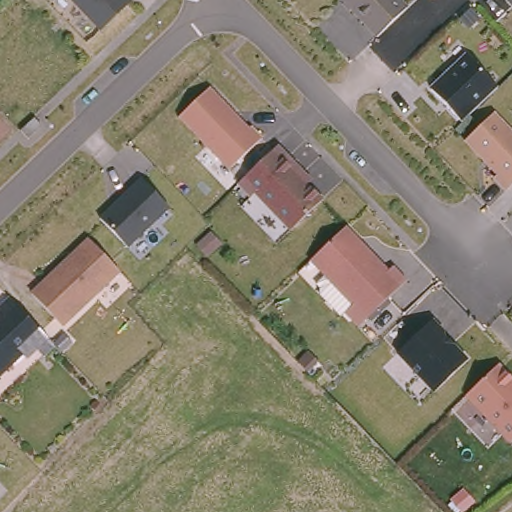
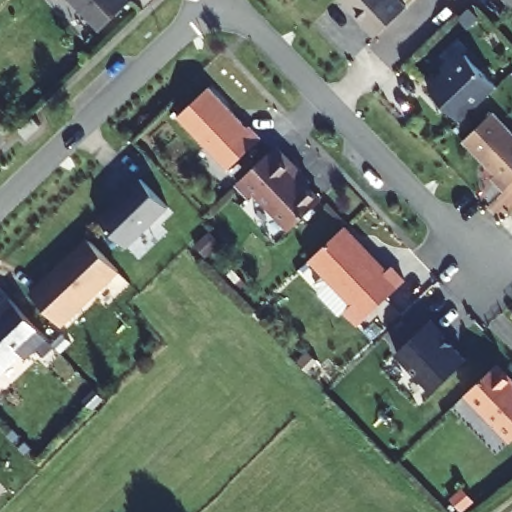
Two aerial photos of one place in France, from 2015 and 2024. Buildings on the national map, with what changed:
unchanged [(72,0),(127,0),(128,1),(100,28),(72,0)]
unchanged [(399,0),(406,7),(376,36),(363,23),(341,0),(399,0)]
unchanged [(505,0),(512,0),(512,7),(505,0)]
unchanged [(430,88),(465,54),(497,86),(470,112),(460,121),(430,88)]
unchanged [(177,117),(208,87),(248,128),(250,126),(261,138),(228,169),(177,117)]
unchanged [(493,176),(497,173),(465,139),(493,112),(512,131),(512,183),(505,189),(493,176)]
unchanged [(40,125),(27,138),(19,130),(33,117),(40,125)]
unchanged [(254,191),(250,195),(237,182),(257,164),(276,145),(302,172),(298,176),(321,200),(290,229),(254,191)]
unchanged [(168,206),(157,218),(126,246),(98,217),(110,206),(113,206),(119,202),(117,199),(127,190),(140,177),(168,206)]
unchanged [(318,294),(318,287),(327,278),(309,259),(344,226),(386,270),(391,266),(405,280),(385,300),(365,318),(357,326),(343,311),(339,316),(318,294)]
unchanged [(88,238),(95,244),(118,270),(61,325),(30,293),(88,238)]
unchanged [(48,337),(27,358),(21,352),(0,373),(0,313),(0,312),(0,306),(10,297),(18,305),(48,337)]
unchanged [(397,352),(430,319),(442,332),(441,333),(466,360),(433,391),(397,352)]
unchanged [(465,394),(473,387),(497,364),(512,380),(512,440),(510,441),(465,394)]

